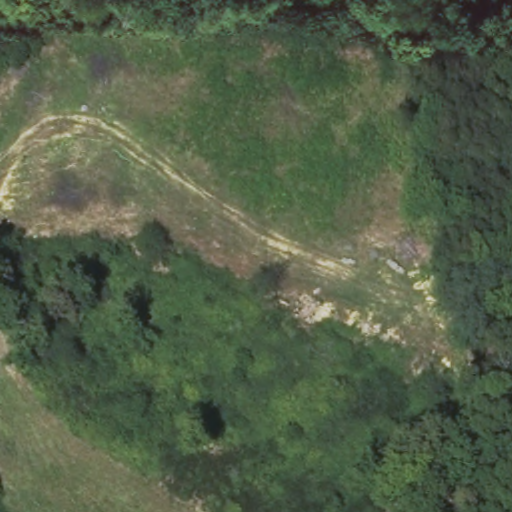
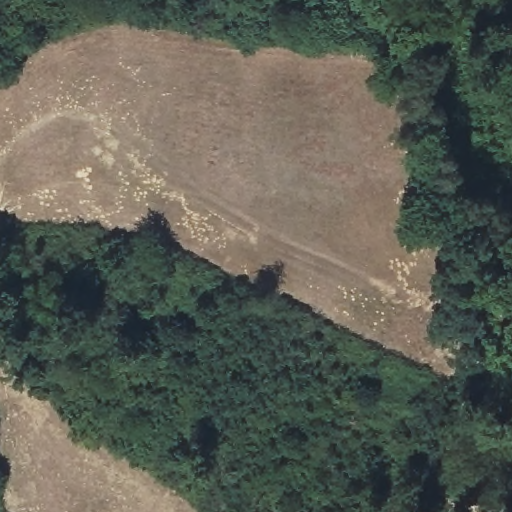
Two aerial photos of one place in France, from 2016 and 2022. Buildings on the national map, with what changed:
[]

